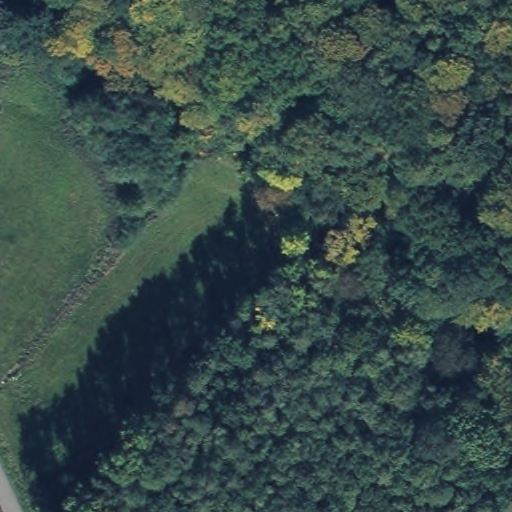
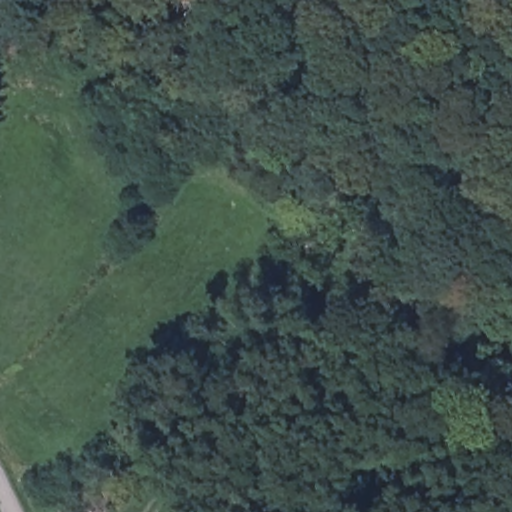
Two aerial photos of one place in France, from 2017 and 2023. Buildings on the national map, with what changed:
[]

